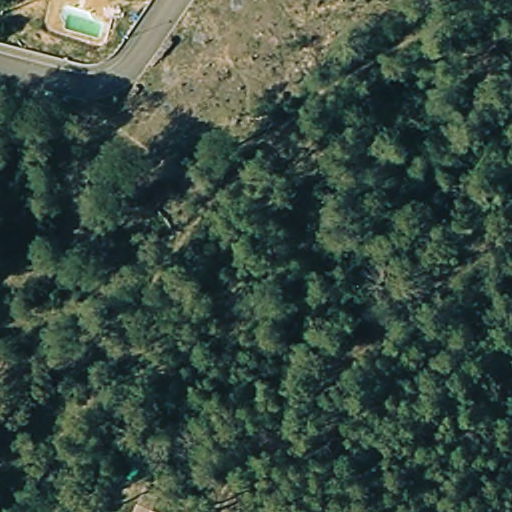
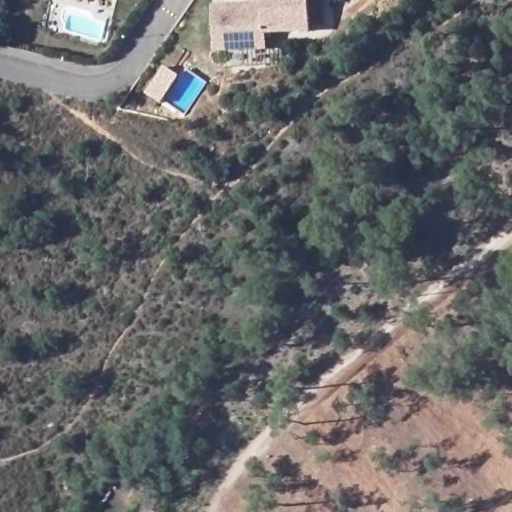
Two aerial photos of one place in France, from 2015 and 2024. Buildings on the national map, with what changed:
new [(262,0),(308,0),(309,31),(265,33),(266,48),(214,49),(213,5),(262,4),(262,0)]

